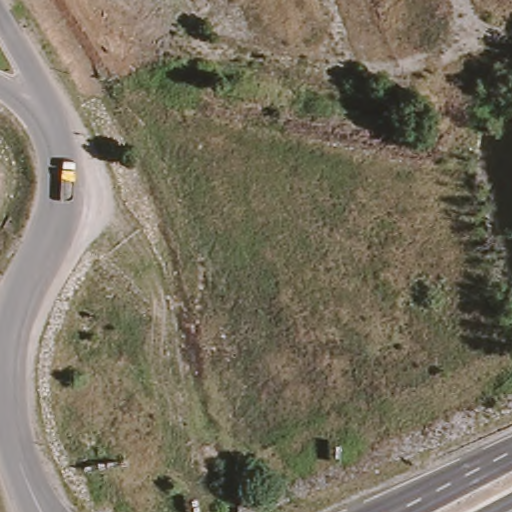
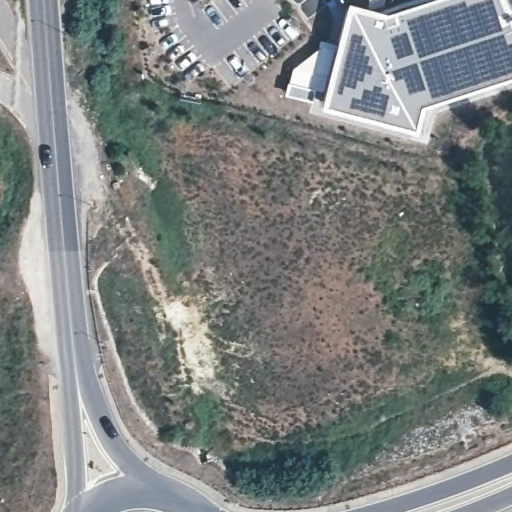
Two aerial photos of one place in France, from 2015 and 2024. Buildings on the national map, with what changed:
new [(336,41),(347,0),(366,0),(387,3),(400,0),(512,0),(512,71),(468,85),(428,102),(418,127),(319,102),(322,90),(336,41)]
new [(292,66),(316,46),(319,37),(336,41),(322,90),(311,87),(308,98),(284,92),(292,66)]

